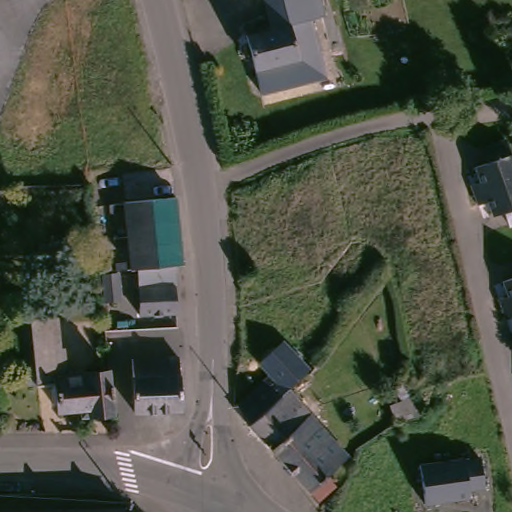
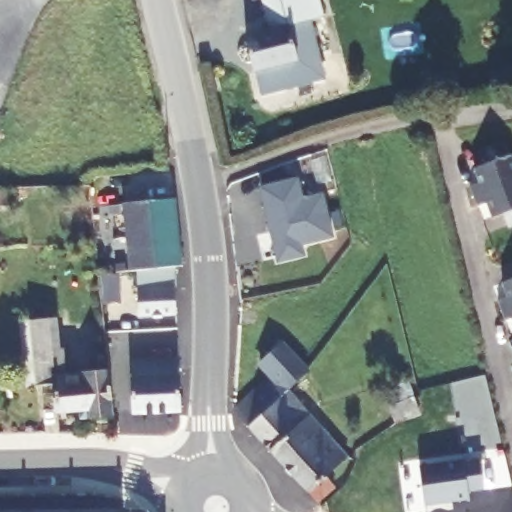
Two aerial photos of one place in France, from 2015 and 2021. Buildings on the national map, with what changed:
unchanged [(265,27),(257,0),(319,0),(323,17),(307,22),(323,79),(258,98),(242,38),(265,27)]
unchanged [(496,208),(484,212),(477,193),(488,189),(483,175),(496,170),(491,156),(512,149),(512,218),(500,222),(496,208)]
new [(297,179),(303,199),(323,194),(333,236),(302,244),(305,255),(280,261),(261,189),(297,179)]
unchanged [(178,192),(184,259),(176,259),(179,306),(142,308),(139,263),(134,263),(127,196),(178,192)]
unchanged [(512,287),(512,293),(510,287),(512,287)]
unchanged [(504,305),(512,303),(512,325),(511,325),(504,305)]
unchanged [(58,312),(58,320),(62,369),(111,365),(116,408),(82,410),(81,403),(60,404),(57,377),(37,378),(31,314),(58,312)]
unchanged [(120,353),(109,354),(108,342),(111,342),(111,336),(119,335),(120,353)]
unchanged [(183,357),(185,409),(138,411),(136,359),(183,357)]
unchanged [(254,423),(240,408),(238,406),(242,402),(277,369),(290,382),(254,423)]
unchanged [(296,463),(254,423),(290,382),(331,424),(296,463)]
unchanged [(409,390),(410,392),(415,409),(389,417),(385,403),(383,398),(409,390)]
unchanged [(353,447),(333,466),(340,473),(323,490),(296,463),(331,424),(353,447)]
unchanged [(420,464),(464,458),(464,460),(479,457),(483,489),(466,490),(467,498),(423,504),(420,464)]
unchanged [(126,498),(126,511),(127,512),(0,512),(0,501),(126,498)]

